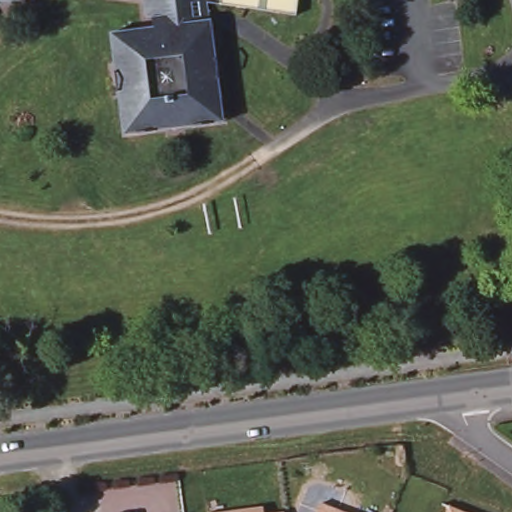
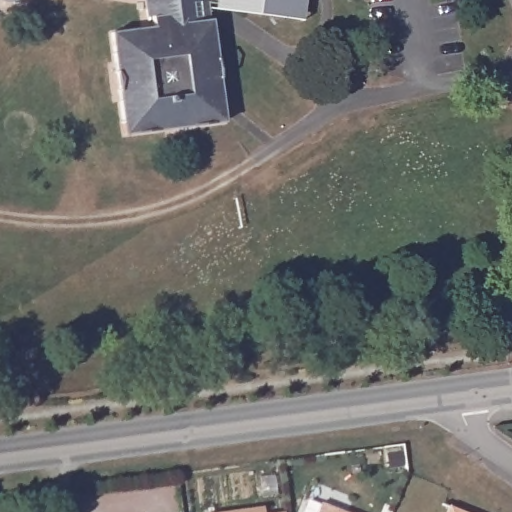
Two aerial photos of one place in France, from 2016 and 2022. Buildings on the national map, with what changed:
unchanged [(5,1),(1,0),(14,0),(12,1),(5,1)]
unchanged [(186,0),(188,13),(184,14),(186,23),(210,19),(210,20),(212,19),(213,23),(222,98),(224,110),(225,122),(213,124),(125,134),(112,33),(154,27),(153,16),(148,17),(145,0),(186,0)]
unchanged [(207,3),(208,0),(299,0),(297,15),(207,3)]
unchanged [(321,502),(347,512),(317,512),(321,502)]
unchanged [(265,504),(265,512),(210,512),(265,504)]
unchanged [(448,504),(469,512),(445,512),(448,504)]
unchanged [(286,509),(286,512),(271,512),(286,509)]

